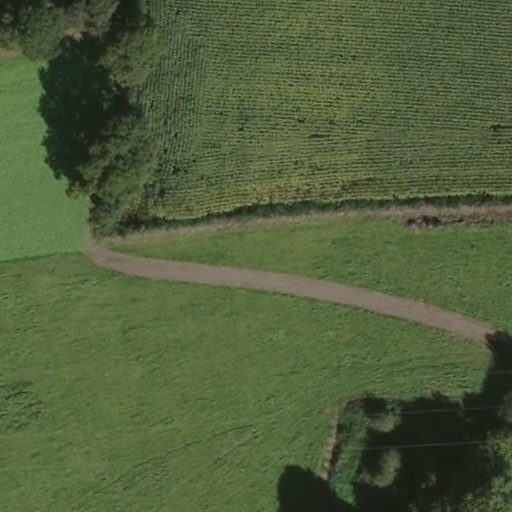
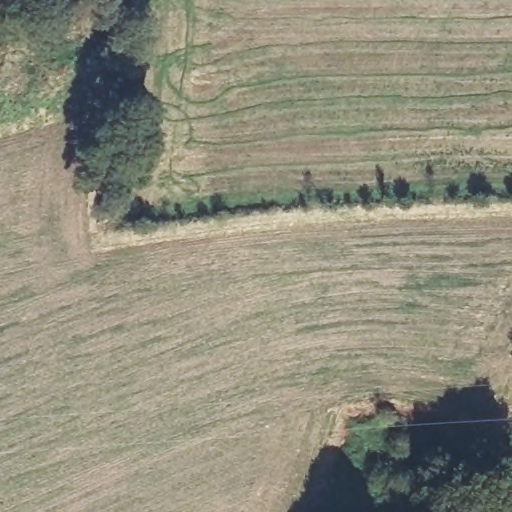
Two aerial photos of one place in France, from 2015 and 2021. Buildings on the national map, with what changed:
[]

